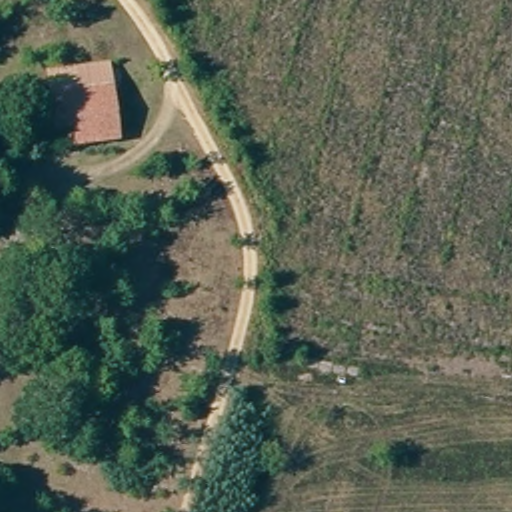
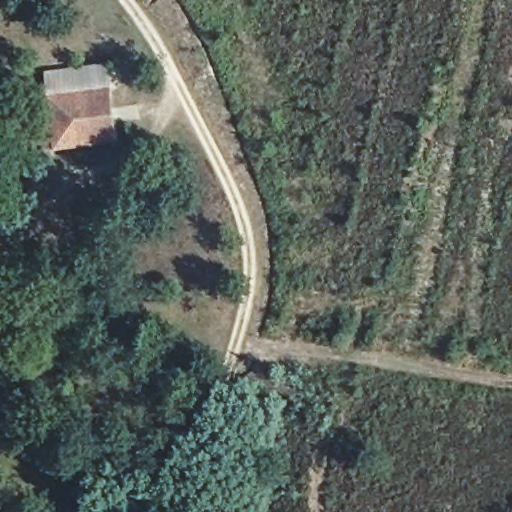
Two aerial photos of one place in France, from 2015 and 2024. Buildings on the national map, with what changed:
unchanged [(47,149),(40,97),(115,88),(124,144),(47,149)]

